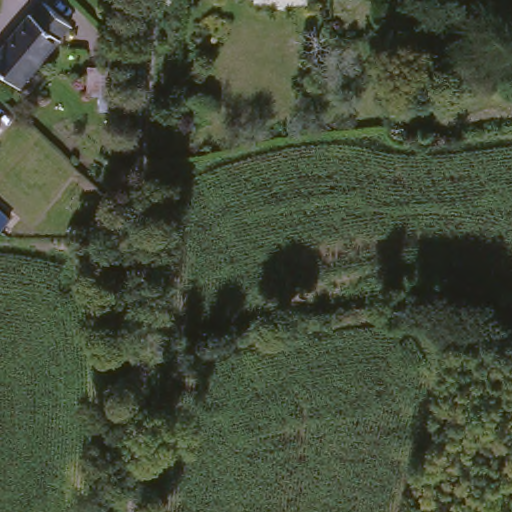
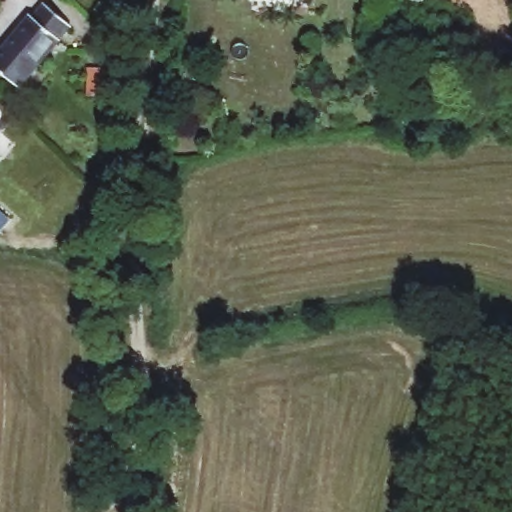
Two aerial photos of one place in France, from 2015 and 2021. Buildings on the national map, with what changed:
unchanged [(0,79),(0,57),(33,20),(36,23),(47,12),(71,35),(18,97),(0,79)]
unchanged [(2,139),(0,142),(0,138),(2,139)]

